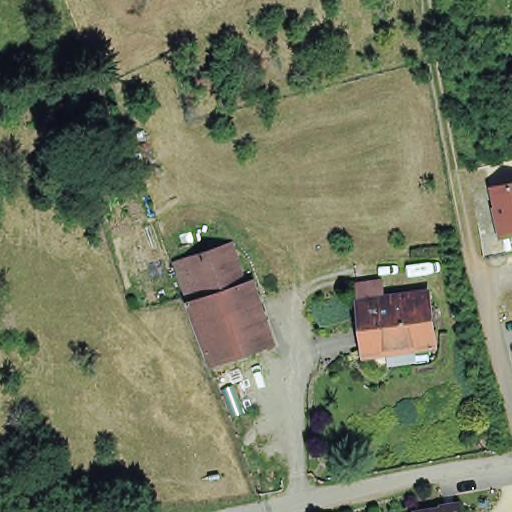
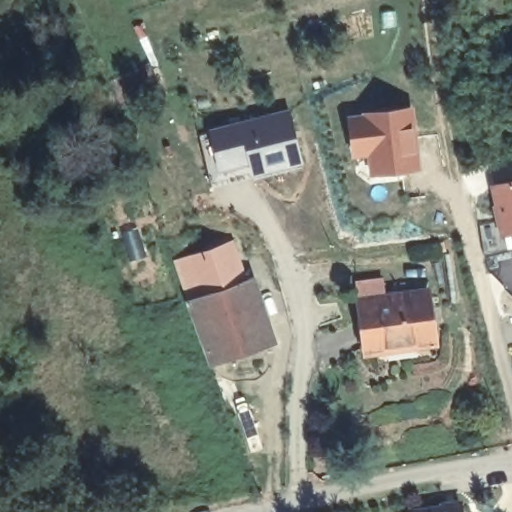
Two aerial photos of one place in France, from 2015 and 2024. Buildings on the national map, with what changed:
new [(414,104),(422,169),(369,175),(367,156),(351,157),(346,112),(414,104)]
new [(212,150),(206,127),(289,107),(303,164),(251,175),(248,165),(218,173),(212,150)]
unchanged [(498,235),(489,180),(512,175),(512,233),(498,235)]
unchanged [(271,344),(259,346),(210,357),(188,295),(191,295),(184,270),(181,257),(196,253),(224,245),(234,242),(245,282),(255,280),(271,344)]
unchanged [(369,346),(361,295),(432,286),(439,337),(369,346)]
unchanged [(459,503),(462,512),(416,512),(459,503)]

